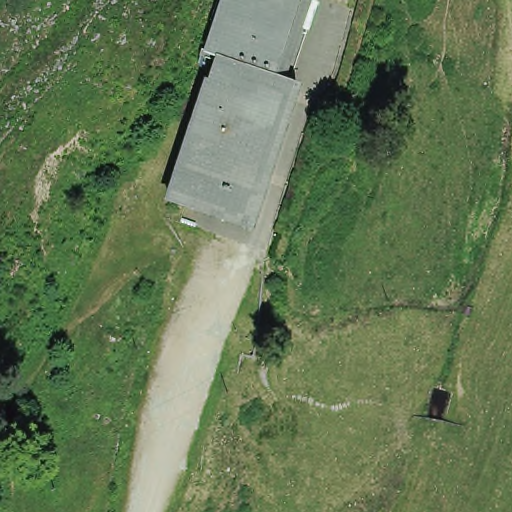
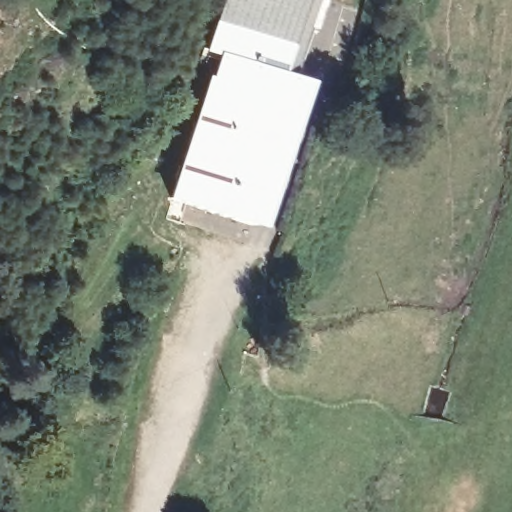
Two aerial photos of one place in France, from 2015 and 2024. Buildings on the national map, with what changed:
unchanged [(199,53),(217,0),(305,0),(279,80),(213,58),(199,53)]
unchanged [(288,83),(241,228),(163,201),(213,58),(279,80),(288,83)]
unchanged [(144,168),(140,176),(123,169),(126,161),(144,168)]

